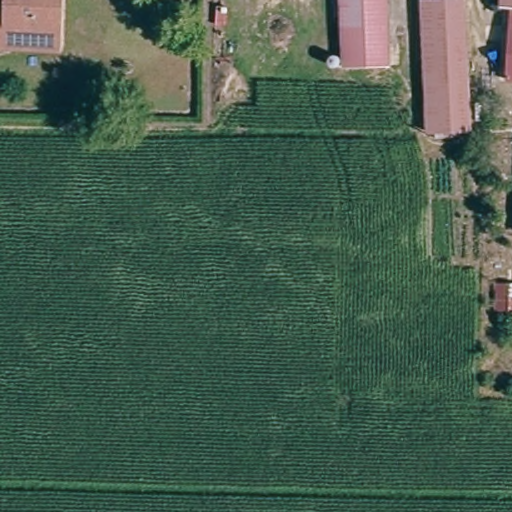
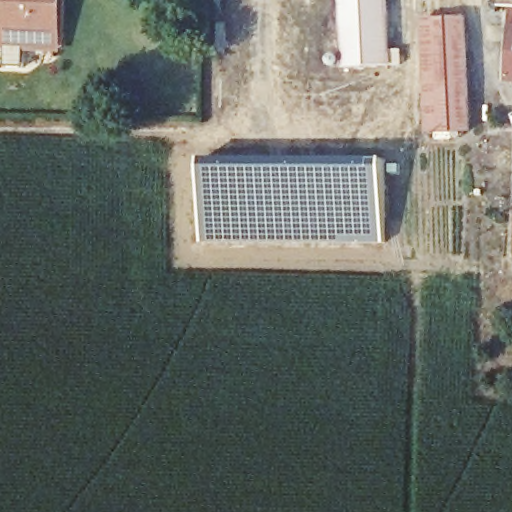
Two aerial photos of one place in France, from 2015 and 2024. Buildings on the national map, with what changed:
unchanged [(0,11),(9,11),(10,0),(55,0),(53,39),(8,38),(8,50),(0,49),(0,11)]
unchanged [(8,50),(8,38),(53,39),(55,0),(67,0),(65,52),(8,50)]
unchanged [(345,66),(341,0),(389,0),(393,63),(345,66)]
unchanged [(428,0),(468,0),(474,141),(435,143),(428,0)]
unchanged [(506,8),(507,0),(512,0),(512,8),(506,8)]
new [(226,163),(293,164),(347,162),(385,159),(385,243),(203,245),(202,163),(226,163)]

